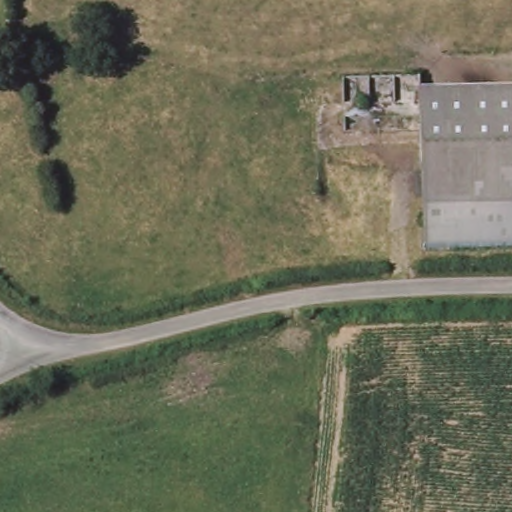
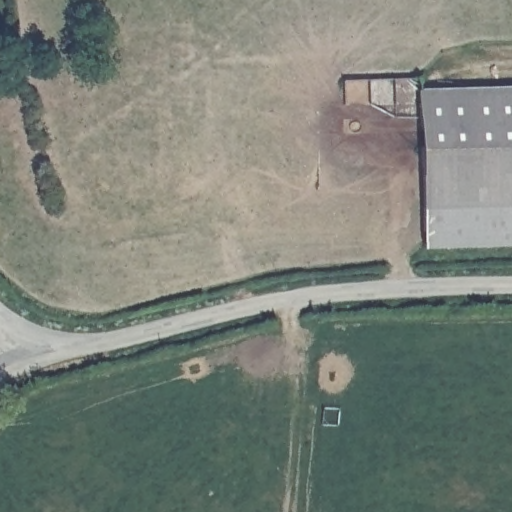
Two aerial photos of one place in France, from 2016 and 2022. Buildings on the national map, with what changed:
unchanged [(422,132),(349,131),(351,74),(423,75),(423,90),(512,91),(512,146),(421,145),(422,132)]
unchanged [(421,145),(512,146),(512,164),(421,162),(421,145)]
unchanged [(419,250),(421,162),(512,164),(512,251),(419,250)]

